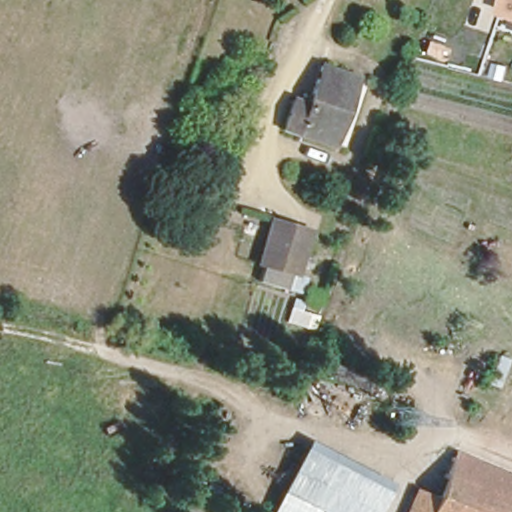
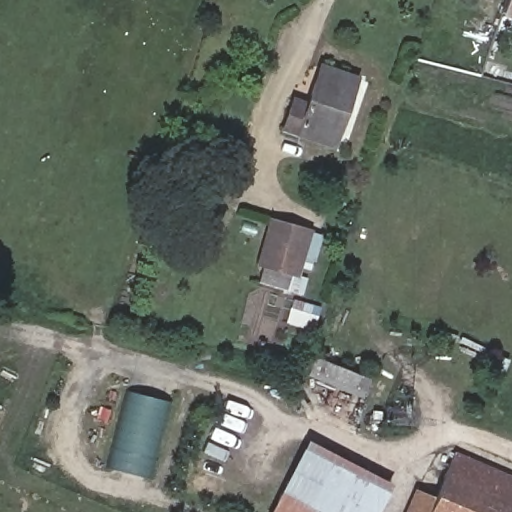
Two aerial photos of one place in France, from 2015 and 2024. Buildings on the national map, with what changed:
unchanged [(504,0),(512,0),(512,18),(499,14),(504,0)]
unchanged [(336,146),(287,131),(296,102),(313,107),(324,68),(356,78),(336,146)]
unchanged [(253,269),(264,225),(283,230),(301,235),(295,261),(290,278),(253,269)]
unchanged [(359,396),(299,372),(305,355),(366,379),(359,396)]
new [(131,392),(168,402),(149,476),(111,467),(131,392)]
unchanged [(378,512),(321,512),(317,510),(316,512),(271,512),(308,440),(391,483),(378,512)]
unchanged [(512,512),(407,512),(415,491),(438,500),(458,454),(512,477),(512,512)]

